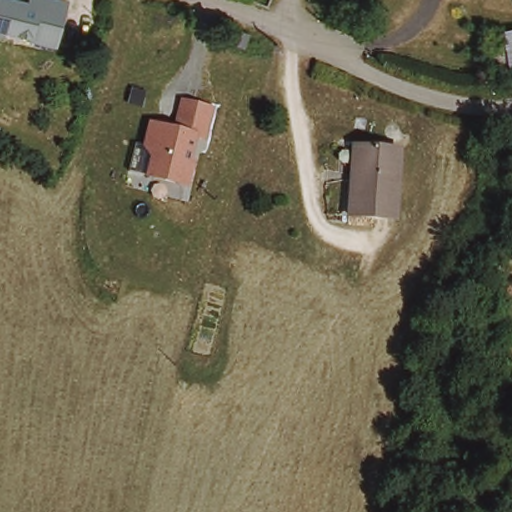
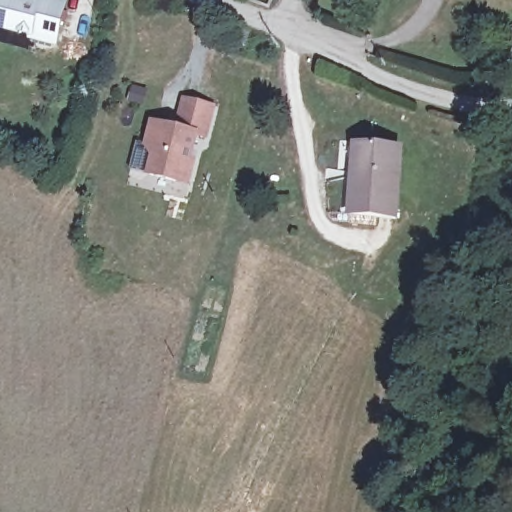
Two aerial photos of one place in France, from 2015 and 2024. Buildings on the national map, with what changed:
unchanged [(35,33),(0,24),(0,0),(22,0),(35,3),(35,0),(57,0),(62,1),(70,3),(67,11),(61,37),(60,42),(35,35),(35,33)]
unchanged [(248,24),(263,29),(259,44),(244,38),(248,24)]
unchanged [(512,54),(512,69),(490,73),(486,40),(510,40),(512,54)]
unchanged [(181,127),(188,99),(216,106),(209,137),(200,134),(195,160),(199,161),(192,184),(154,174),(159,152),(155,151),(152,143),(157,121),(181,127)]
unchanged [(355,145),(402,152),(389,223),(345,216),(355,145)]

